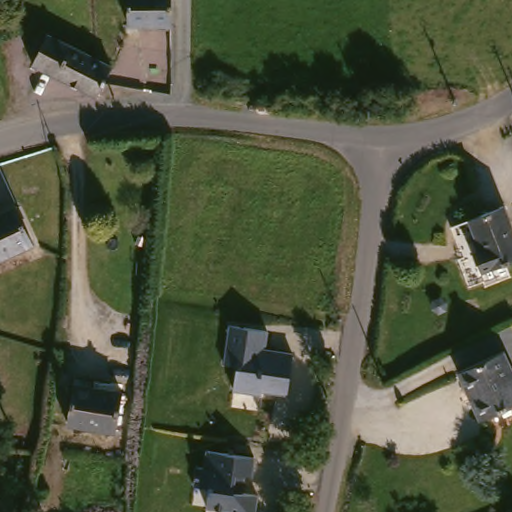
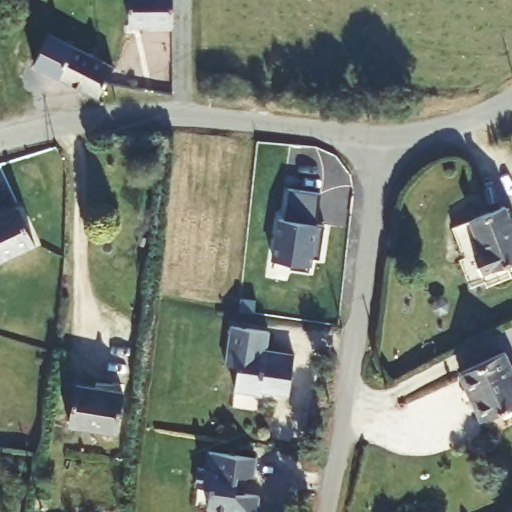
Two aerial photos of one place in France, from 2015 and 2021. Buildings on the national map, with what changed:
unchanged [(129,0),(172,0),(172,25),(129,25),(129,0)]
unchanged [(94,57),(113,67),(105,84),(98,97),(33,65),(49,35),(94,57)]
new [(278,216),(284,217),(289,187),(319,191),(315,221),(323,222),(319,257),(309,255),(308,263),(307,270),(288,267),(289,261),(270,257),(278,216)]
unchanged [(0,260),(0,214),(16,207),(34,244),(0,260)]
unchanged [(486,276),(478,257),(487,253),(476,222),(509,210),(512,216),(512,265),(486,276)]
unchanged [(268,322),(266,346),(293,350),(287,392),(233,386),(236,362),(224,361),(229,320),(268,322)]
unchanged [(512,367),(512,402),(481,417),(459,370),(504,350),(512,367)]
unchanged [(123,391),(116,431),(69,423),(75,382),(123,391)]
unchanged [(255,451),(252,482),(258,484),(255,510),(205,504),(207,485),(195,483),(197,466),(205,466),(208,448),(255,451)]

